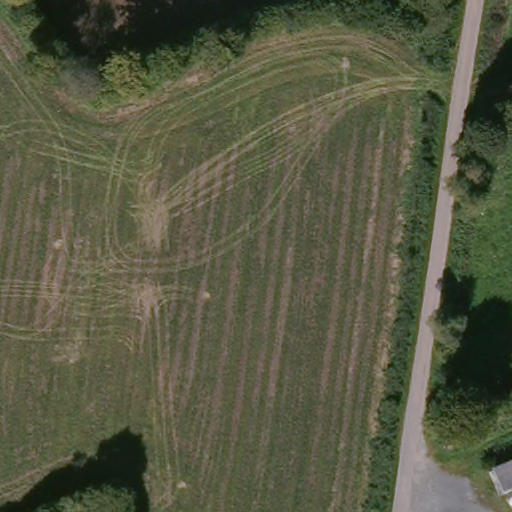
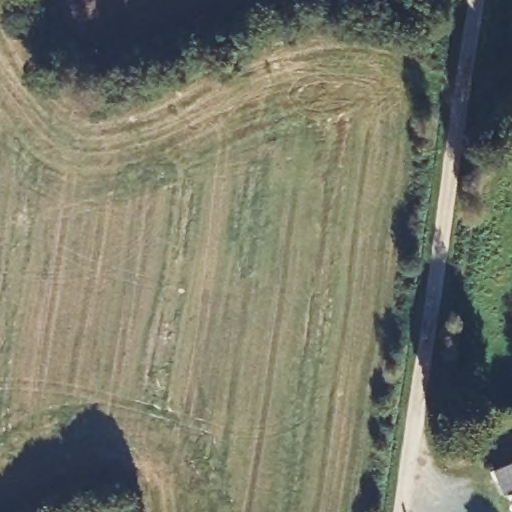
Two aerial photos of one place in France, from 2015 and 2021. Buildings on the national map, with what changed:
unchanged [(502,502),(488,473),(512,462),(512,498),(502,502)]

